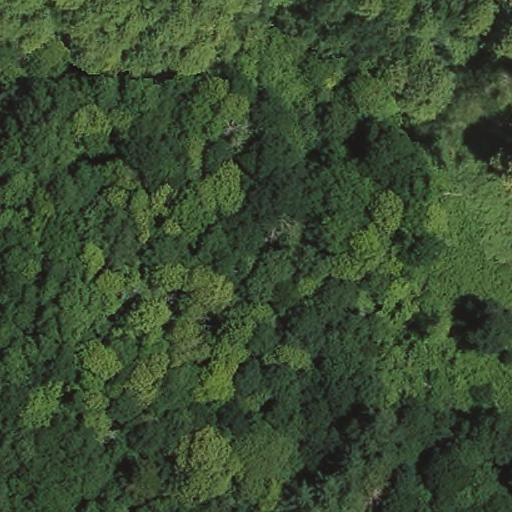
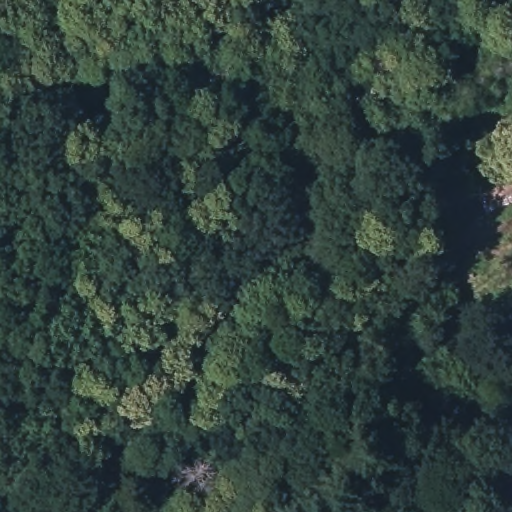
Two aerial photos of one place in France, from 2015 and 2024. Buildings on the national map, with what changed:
unchanged [(296,460),(277,460),(278,442),(297,443),(296,460)]

